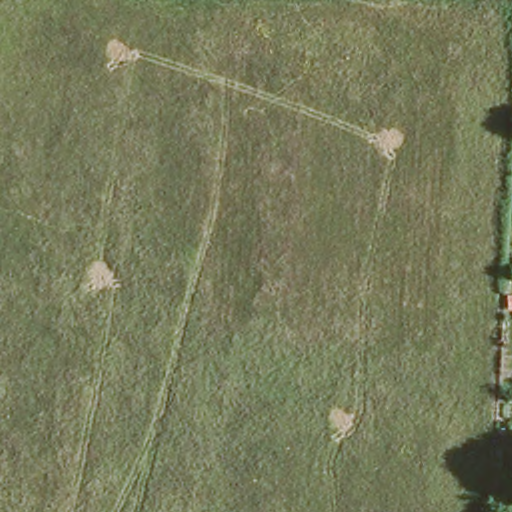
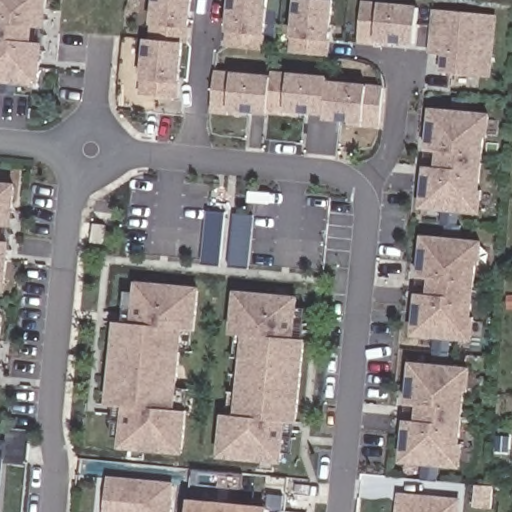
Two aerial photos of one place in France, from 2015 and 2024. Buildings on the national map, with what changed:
new [(46,26),(34,25),(31,42),(42,43),(40,85),(0,82),(0,0),(49,0),(46,26)]
new [(140,79),(144,39),(150,39),(151,24),(153,0),(192,0),(190,28),(184,27),(182,42),(180,81),(177,97),(140,94),(140,79)]
new [(226,30),(229,0),(267,0),(263,34),(262,49),(225,46),(226,30)]
new [(292,37),(295,0),(321,0),(333,1),(330,41),(328,55),(290,52),(292,37)]
new [(378,2),(417,7),(412,44),(375,41),(358,40),(361,1),(378,2)]
new [(441,55),(426,52),(431,8),(496,15),(490,76),(437,71),(441,55)]
new [(359,125),(323,121),(323,115),(290,112),(290,116),(266,113),(243,111),(242,116),(211,113),(214,71),(231,72),(268,77),(269,70),(287,71),(327,76),(327,82),(362,86),(382,88),(380,127),(359,125)]
new [(428,108),(491,115),(481,215),(419,209),(428,108)]
new [(11,227),(1,226),(0,234),(0,181),(16,182),(11,227)]
new [(207,211),(225,213),(220,267),(202,265),(207,211)]
new [(234,214),(253,216),(248,269),(228,267),(234,214)]
new [(420,236),(482,242),(471,341),(410,334),(420,236)]
new [(7,285),(0,284),(0,242),(12,244),(7,285)]
new [(119,447),(122,407),(106,405),(115,321),(131,322),(135,281),(200,287),(195,331),(182,330),(175,410),(188,411),(184,454),(119,447)]
new [(218,457),(222,413),(234,414),(241,336),(230,334),(234,290),(299,297),(295,337),(305,337),(297,422),(286,422),(282,463),(218,457)]
unchanged [(511,292),(512,292),(512,313),(509,313),(510,304),(511,292)]
new [(0,357),(0,313),(4,313),(0,357)]
new [(399,462),(408,361),(471,367),(461,468),(399,462)]
new [(6,457),(1,512),(0,512),(0,440),(7,441),(6,457)]
new [(174,482),(171,512),(105,512),(108,476),(174,482)]
new [(461,498),(460,512),(395,512),(397,492),(461,498)]
new [(267,508),(267,512),(187,512),(189,501),(267,508)]

